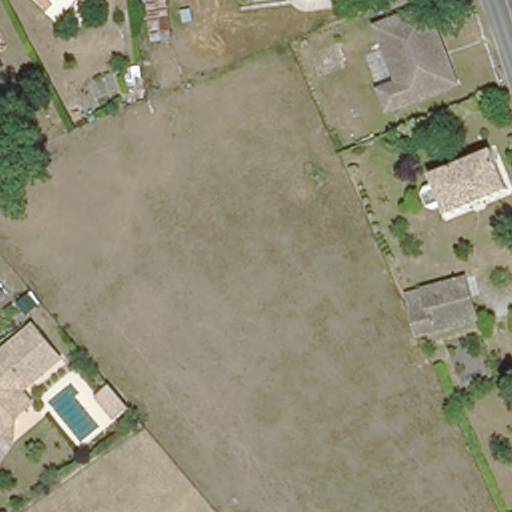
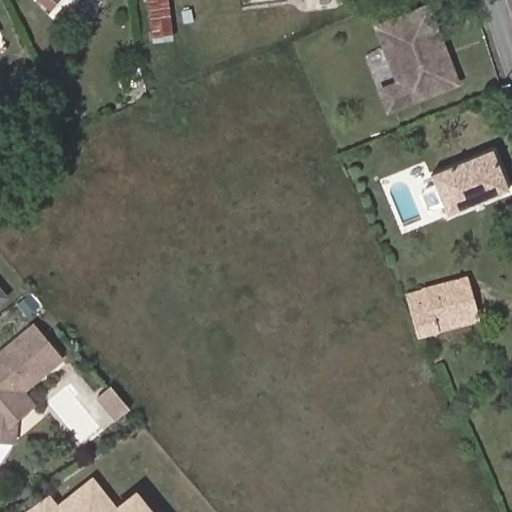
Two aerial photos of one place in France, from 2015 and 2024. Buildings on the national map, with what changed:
unchanged [(58,18),(39,0),(75,0),(58,18)]
unchanged [(172,37),(152,40),(147,0),(167,0),(172,37)]
unchanged [(388,111),(380,91),(399,84),(377,29),(402,19),(419,12),(427,10),(456,84),(448,87),(426,95),(388,111)]
unchanged [(491,150),(509,192),(463,211),(448,217),(430,177),(450,168),(491,150)]
unchanged [(409,296),(408,292),(446,282),(469,275),(470,280),(475,297),(481,321),(421,337),(409,296)]
unchanged [(28,292),(38,305),(26,315),(15,303),(28,292)]
unchanged [(0,308),(0,293),(7,301),(0,308)]
unchanged [(22,396),(31,408),(14,422),(11,445),(0,444),(0,358),(32,331),(59,364),(22,396)]
new [(130,408),(114,422),(94,398),(110,385),(130,408)]
new [(57,504),(92,476),(117,507),(136,490),(154,512),(25,512),(49,493),(57,504)]

